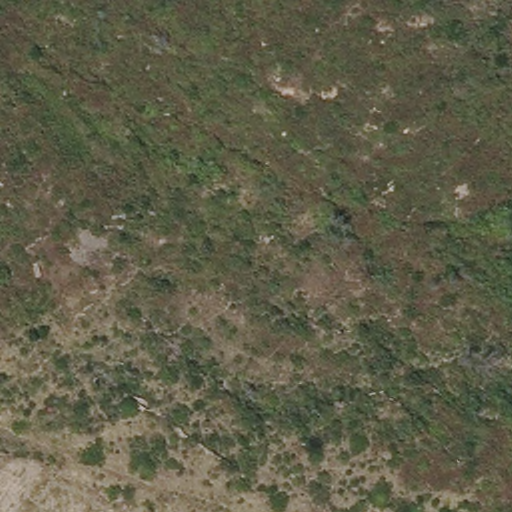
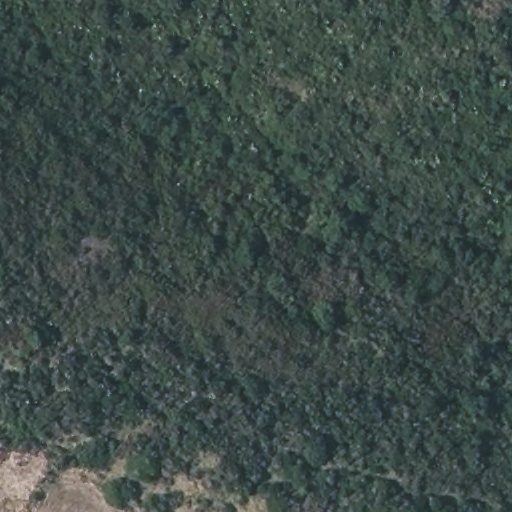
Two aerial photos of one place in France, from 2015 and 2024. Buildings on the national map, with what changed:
[]

